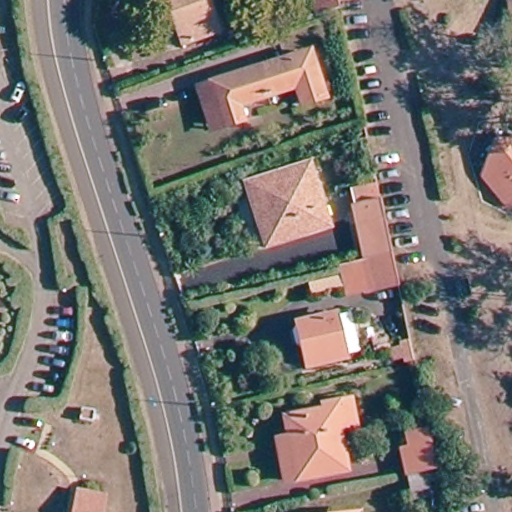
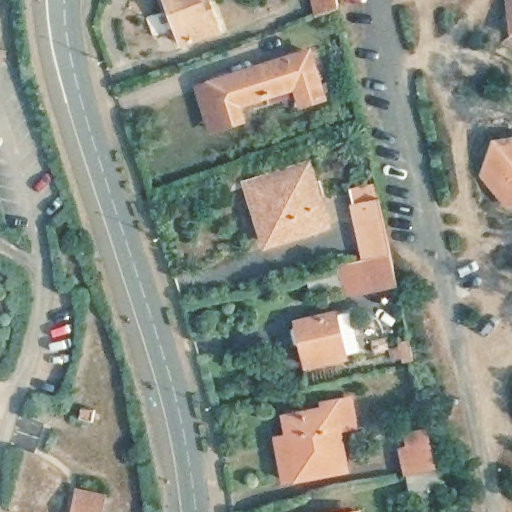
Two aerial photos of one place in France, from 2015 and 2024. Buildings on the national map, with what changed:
unchanged [(184,45),(166,0),(206,0),(218,32),(184,45)]
unchanged [(312,23),(306,0),(331,0),(334,15),(312,23)]
unchanged [(510,25),(507,5),(512,2),(512,41),(511,40),(510,25)]
unchanged [(198,89),(207,86),(307,55),(322,100),(301,106),(295,87),(236,106),(241,122),(222,129),(212,131),(198,89)]
unchanged [(508,208),(481,174),(485,162),(492,141),(512,138),(512,208),(508,208)]
unchanged [(255,206),(247,186),(307,167),(325,226),(296,235),(267,245),(255,206)]
unchanged [(387,260),(363,265),(356,230),(353,230),(348,209),(375,204),(387,260)]
unchanged [(363,265),(387,260),(393,291),(361,297),(355,266),(363,265)]
unchanged [(343,356),(308,365),(304,347),(298,324),(303,323),(333,316),(343,356)]
unchanged [(278,441),(290,439),(286,418),(322,411),(322,406),(348,401),(353,427),(337,430),(345,469),(286,481),(278,441)]
unchanged [(90,414),(89,428),(69,426),(75,411),(90,414)]
unchanged [(405,498),(402,481),(396,456),(405,454),(402,442),(425,436),(432,474),(437,491),(405,498)]
unchanged [(105,495),(101,512),(71,512),(76,490),(105,495)]

